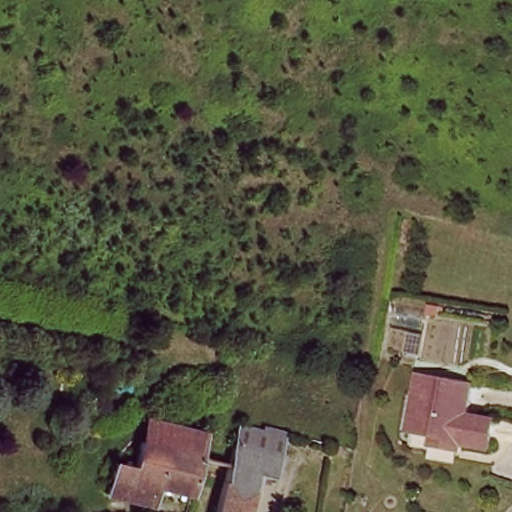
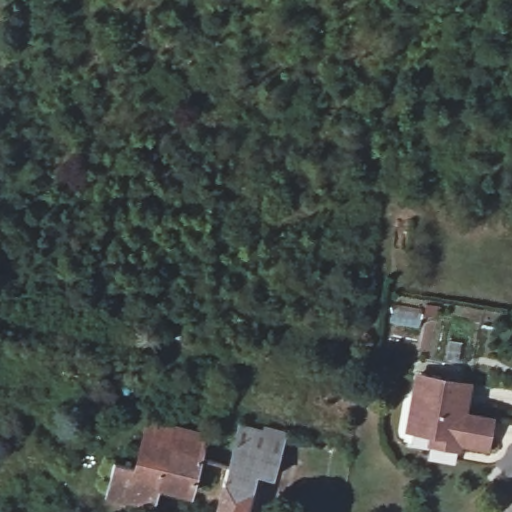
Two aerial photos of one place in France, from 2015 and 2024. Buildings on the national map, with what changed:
unchanged [(422,440),(403,437),(409,403),(402,402),(405,381),(458,390),(453,419),(481,424),(477,452),(448,447),(447,454),(430,451),(420,450),(422,440)]
unchanged [(116,463),(137,470),(151,421),(208,435),(202,458),(192,495),(160,488),(155,506),(129,500),(108,495),(116,463)]
unchanged [(269,436),(270,430),(287,435),(270,485),(255,482),(246,512),(216,512),(238,426),(269,436)]

